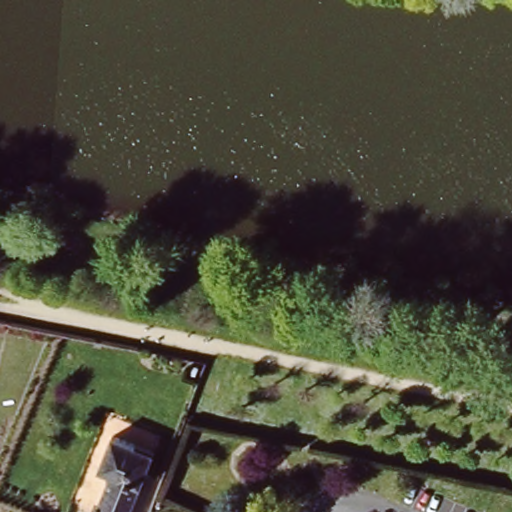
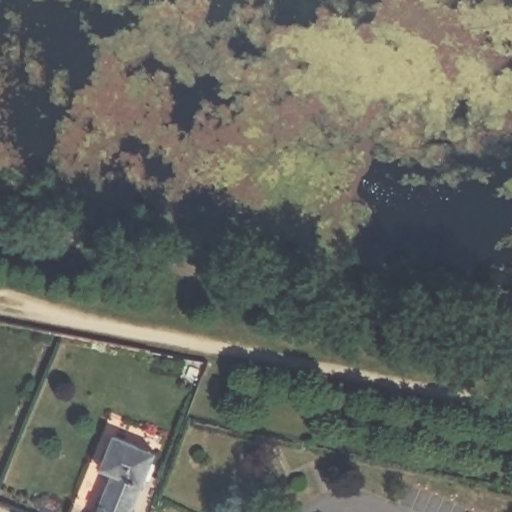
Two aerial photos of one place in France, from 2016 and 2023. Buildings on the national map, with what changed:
unchanged [(112,471),(97,466),(110,432),(136,442),(132,453),(149,460),(129,512),(96,512),(112,471)]

